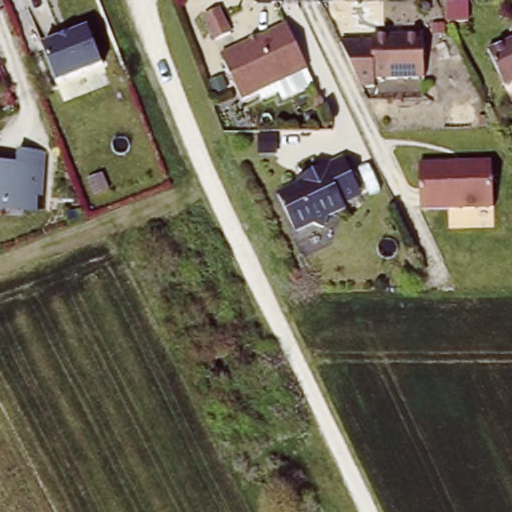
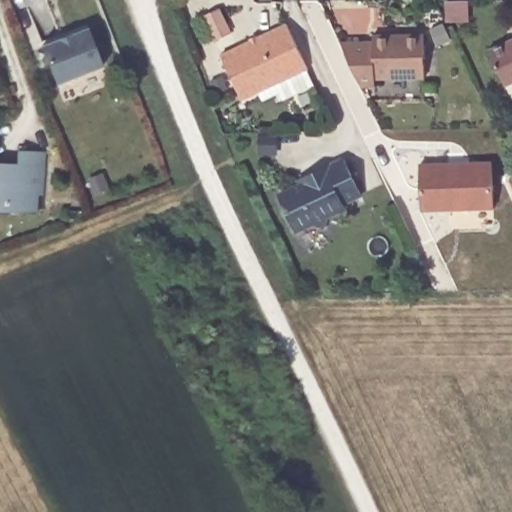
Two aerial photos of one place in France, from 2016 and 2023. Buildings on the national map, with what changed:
unchanged [(242,94),(221,50),(287,19),(308,63),(242,94)]
unchanged [(89,27),(102,64),(52,81),(40,44),(89,27)]
unchanged [(372,42),(372,36),(393,35),(393,43),(402,42),(402,35),(432,34),(433,78),(383,79),(384,87),(361,87),(340,43),(372,42)]
unchanged [(488,50),(508,40),(510,42),(512,41),(512,83),(505,86),(488,50)]
unchanged [(15,162),(15,147),(45,149),(43,193),(38,193),(37,212),(0,211),(0,161),(15,162)]
unchanged [(278,195),(301,184),(299,180),(307,176),(345,158),(362,195),(343,203),(345,208),(328,216),(324,228),(312,224),(296,231),(278,195)]
unchanged [(455,159),(455,163),(467,163),(467,159),(492,158),(493,203),(493,223),(449,224),(448,204),(421,205),(420,160),(455,159)]

